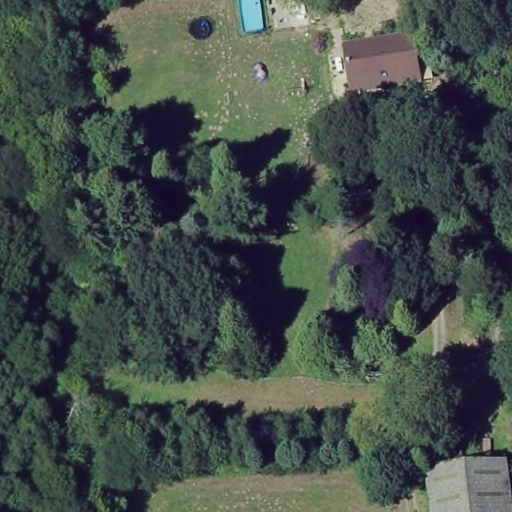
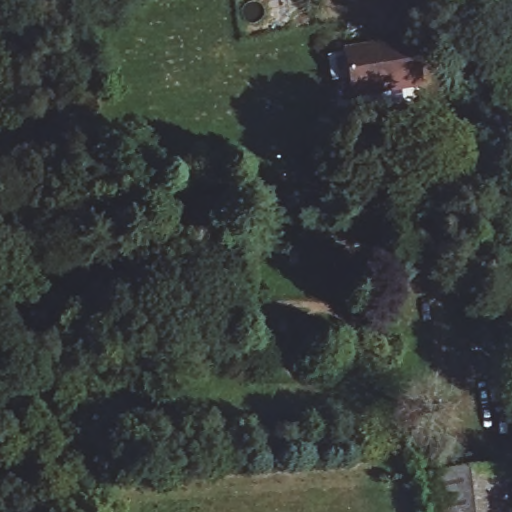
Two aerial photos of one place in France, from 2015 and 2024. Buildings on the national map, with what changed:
unchanged [(352,100),(343,58),(411,43),(420,86),(352,100)]
unchanged [(507,512),(428,512),(422,472),(501,463),(507,512)]

